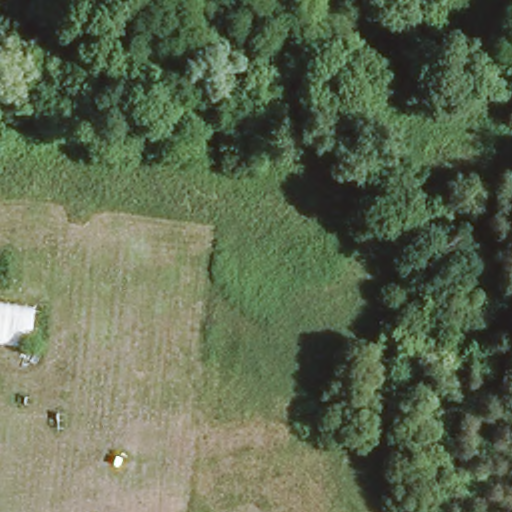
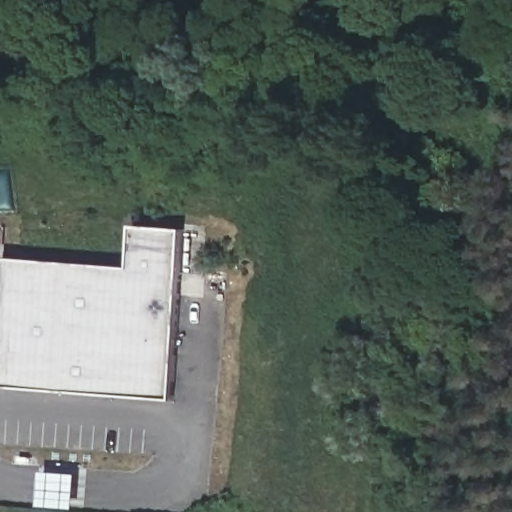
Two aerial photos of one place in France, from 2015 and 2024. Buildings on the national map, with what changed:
unchanged [(395,189),(447,199),(444,218),(392,208),(395,189)]
new [(128,268),(131,226),(181,230),(169,401),(0,388),(0,258),(128,268)]
demolished [(29,305),(25,341),(0,338),(0,301),(29,305)]

